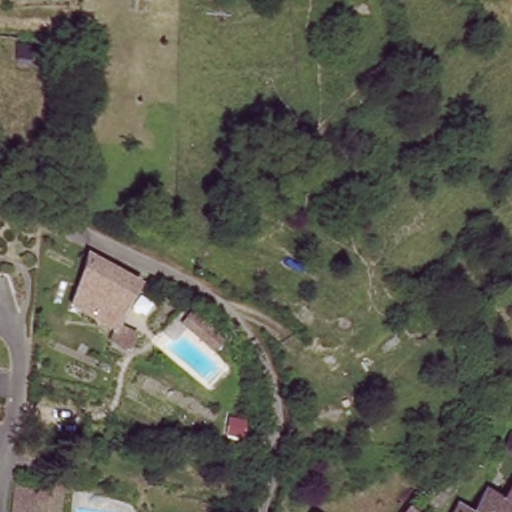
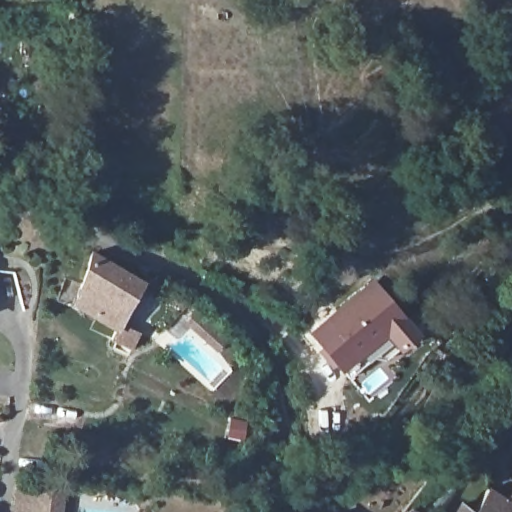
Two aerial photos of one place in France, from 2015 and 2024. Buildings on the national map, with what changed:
unchanged [(130,330),(123,342),(105,330),(110,321),(72,299),(90,251),(135,278),(113,318),(130,330)]
new [(366,276),(408,325),(378,353),(366,352),(342,372),(305,327),(366,276)]
unchanged [(222,345),(212,354),(185,324),(194,316),(222,345)]
unchanged [(512,444),(512,449),(510,448),(512,444)]
unchanged [(31,512),(22,511),(25,490),(26,481),(44,484),(56,485),(57,478),(67,480),(67,487),(70,487),(65,512),(31,512)]
unchanged [(506,499),(512,490),(512,512),(472,512),(486,487),(506,499)]
unchanged [(471,512),(454,512),(459,502),(471,512)]
unchanged [(403,512),(407,507),(415,512),(403,512)]

